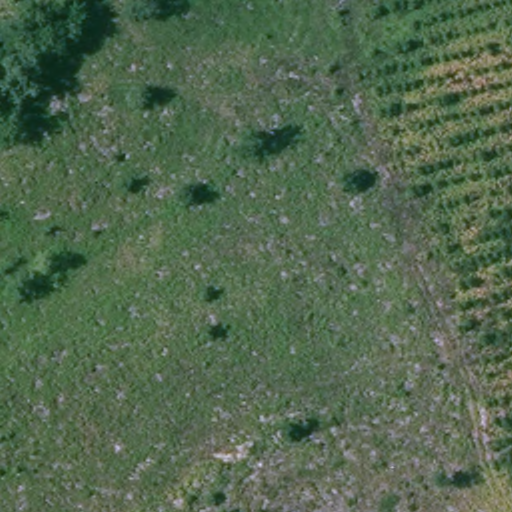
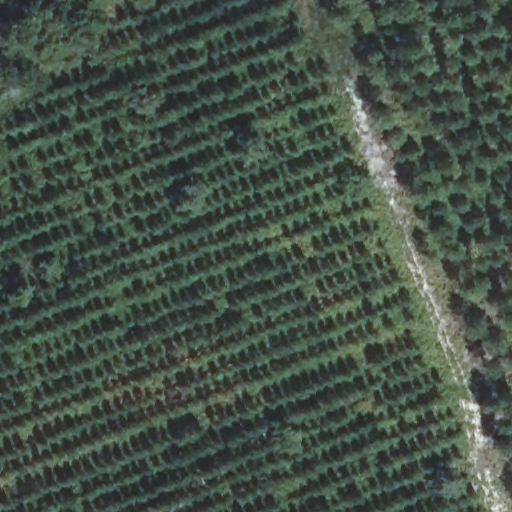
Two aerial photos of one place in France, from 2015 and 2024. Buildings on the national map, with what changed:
[]

